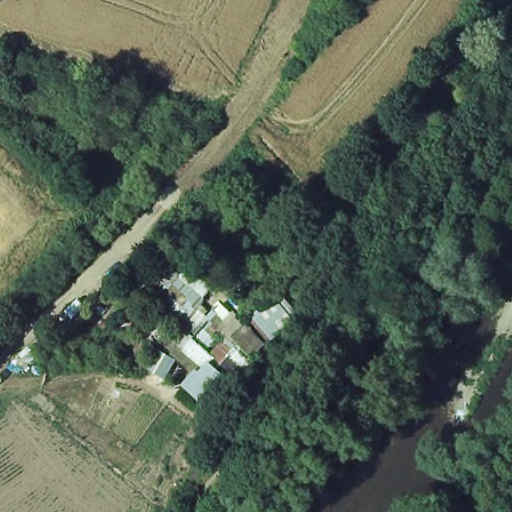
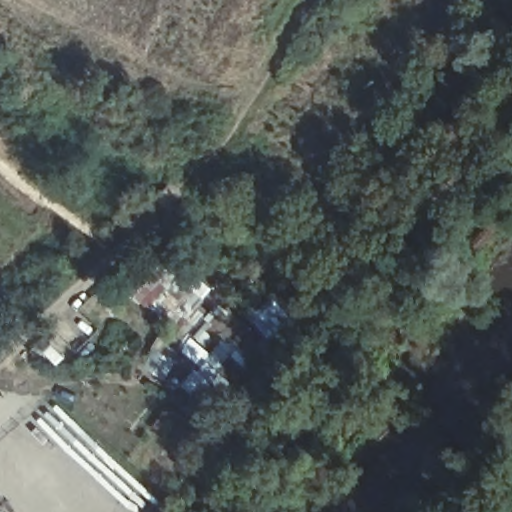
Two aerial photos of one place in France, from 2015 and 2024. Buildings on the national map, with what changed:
unchanged [(160,259),(179,270),(186,263),(215,284),(202,303),(213,310),(221,299),(226,303),(229,298),(250,314),(278,289),(306,316),(273,348),(268,342),(230,379),(223,374),(202,401),(182,384),(193,372),(174,357),(187,338),(156,320),(171,296),(145,279),(160,259)]

